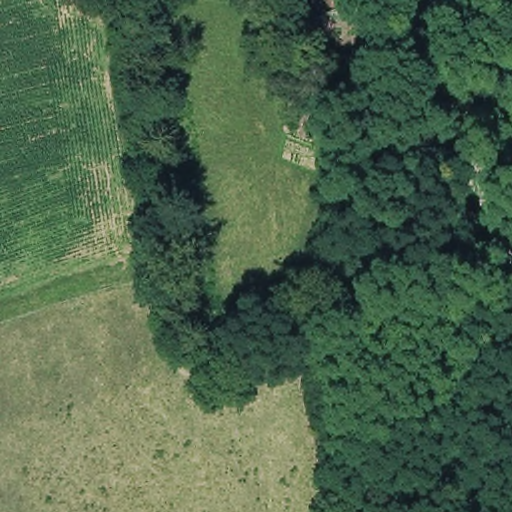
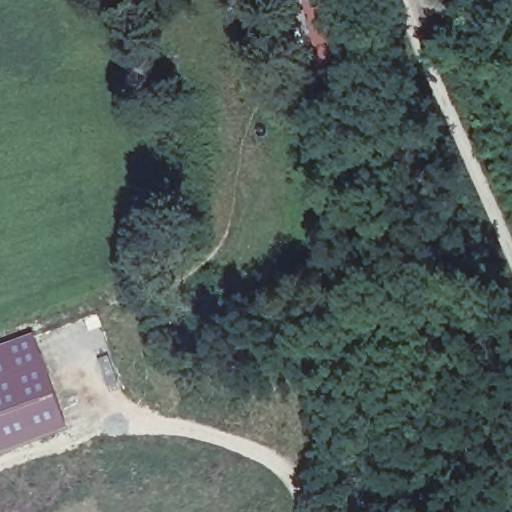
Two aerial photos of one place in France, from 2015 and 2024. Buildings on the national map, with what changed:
unchanged [(352,19),(316,25),(313,0),(350,0),(352,19)]
new [(70,429),(0,457),(0,345),(34,332),(70,429)]

